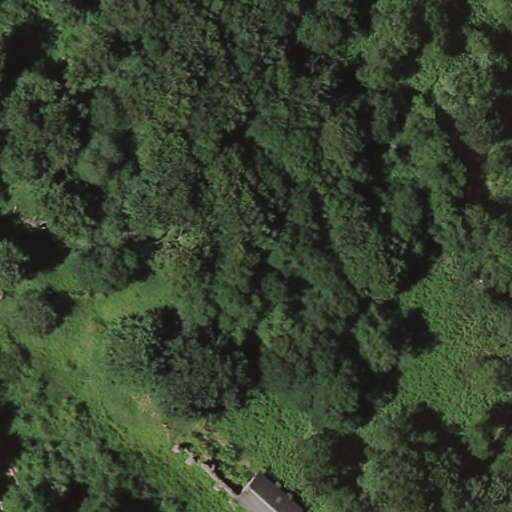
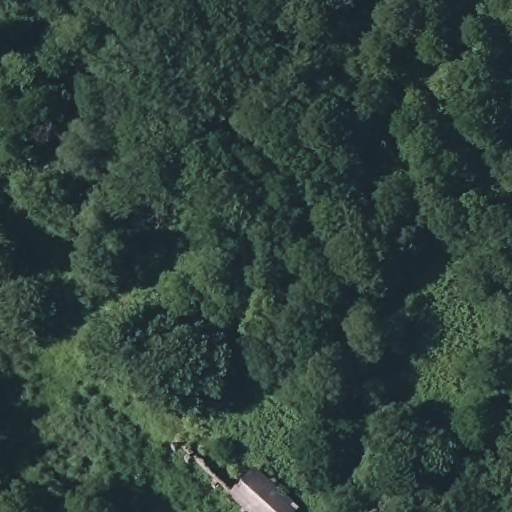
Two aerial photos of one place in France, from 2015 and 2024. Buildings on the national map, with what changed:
unchanged [(301,505),(295,512),(243,512),(231,500),(237,493),(258,468),(301,505)]

